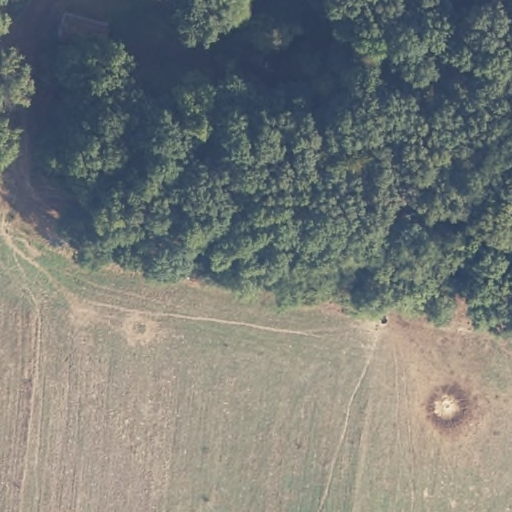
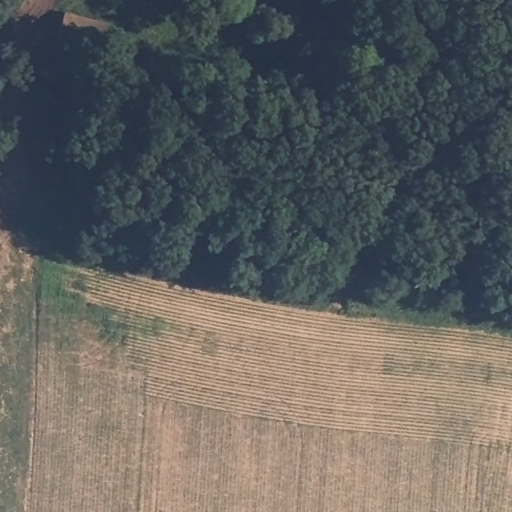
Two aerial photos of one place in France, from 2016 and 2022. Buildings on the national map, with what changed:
unchanged [(122,22),(114,56),(60,42),(65,7),(122,22)]

